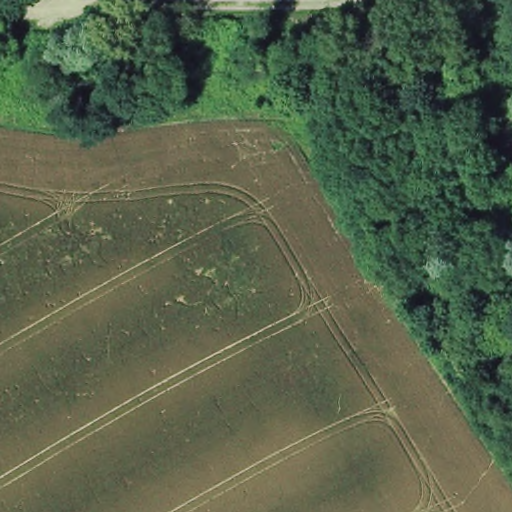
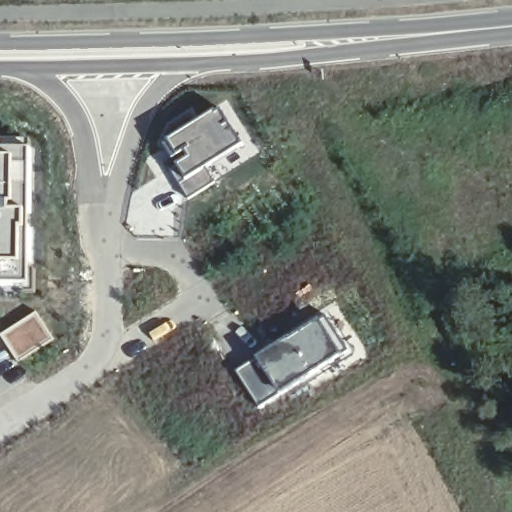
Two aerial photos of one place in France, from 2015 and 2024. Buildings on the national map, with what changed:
new [(240,144),(179,180),(162,138),(214,106),(240,144)]
new [(32,140),(32,289),(0,288),(0,139),(32,140)]
new [(37,311),(56,340),(19,364),(0,336),(0,335),(37,311)]
new [(325,314),(350,351),(305,381),(258,407),(236,371),(325,314)]

